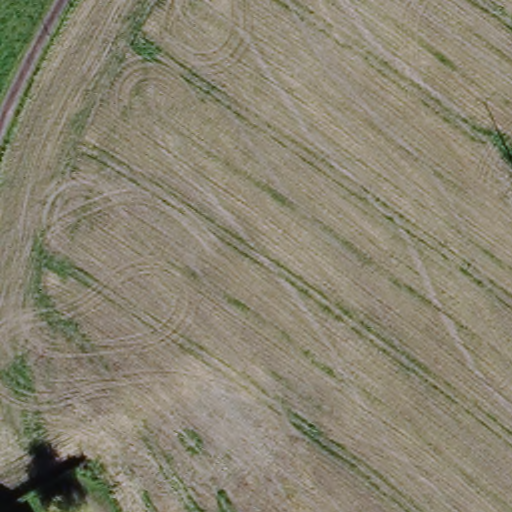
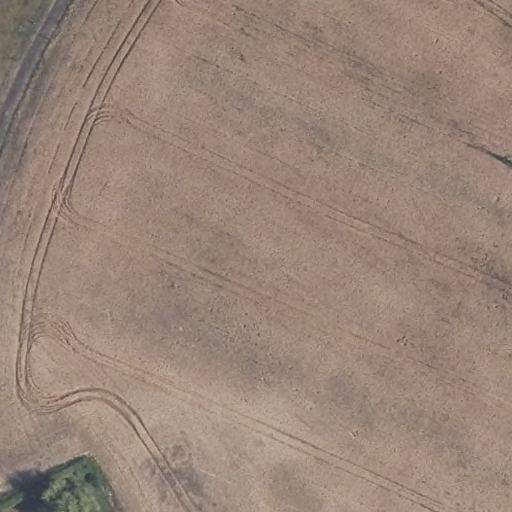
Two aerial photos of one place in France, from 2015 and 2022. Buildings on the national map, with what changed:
[]

